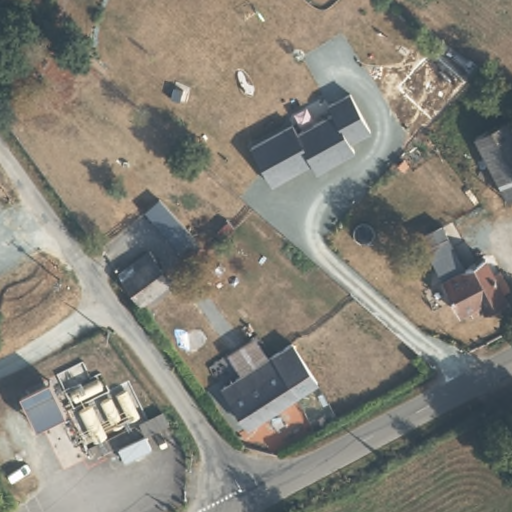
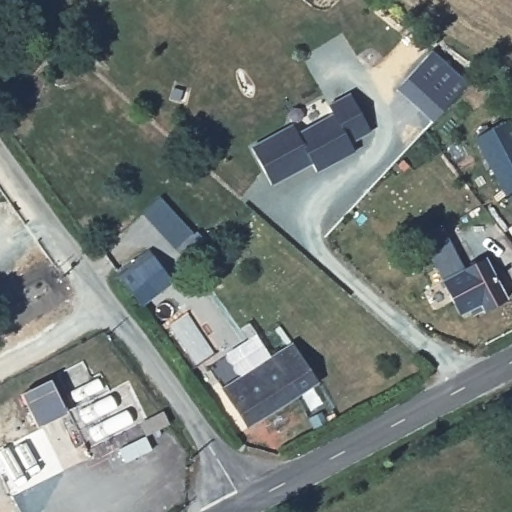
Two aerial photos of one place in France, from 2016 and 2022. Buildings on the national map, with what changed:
new [(430,50),(465,83),(433,121),(395,89),(430,50)]
unchanged [(295,125),(299,131),(333,113),(329,103),(349,93),(369,131),(350,140),(355,149),(314,170),(310,163),(268,184),(249,148),(295,125)]
unchanged [(503,115),(512,131),(512,194),(508,197),(472,135),(503,115)]
unchanged [(182,256),(146,212),(160,199),(198,244),(182,256)]
unchanged [(418,252),(448,237),(471,269),(490,258),(512,294),(512,305),(491,318),(486,309),(468,319),(430,257),(422,260),(418,252)]
unchanged [(168,278),(145,293),(140,297),(137,293),(121,268),(125,265),(149,249),(168,278)]
unchanged [(228,373),(266,346),(275,358),(296,343),(321,381),(249,427),(222,392),(235,383),(228,373)]
unchanged [(52,382),(67,414),(36,429),(19,397),(52,382)]
demolished [(171,418),(168,419),(151,429),(149,427),(145,418),(161,409),(166,408),(169,414),(171,418)]
unchanged [(0,501),(0,498),(1,501),(0,501)]

